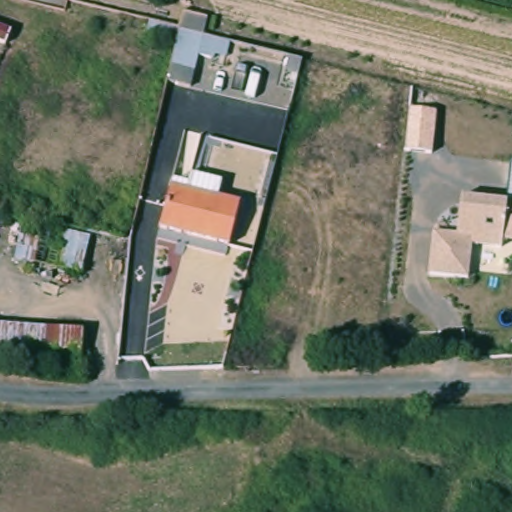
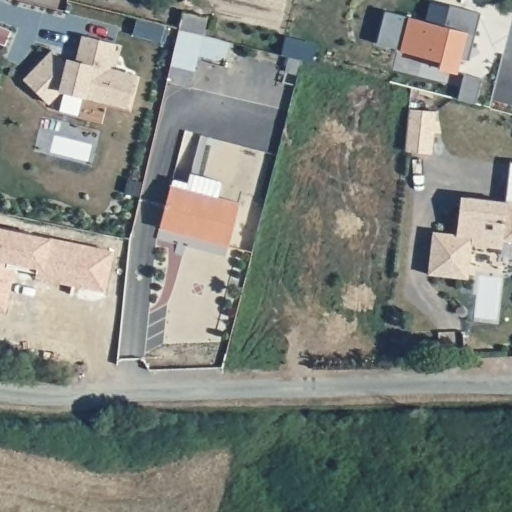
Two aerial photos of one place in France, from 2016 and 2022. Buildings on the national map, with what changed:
new [(467,61),(461,59),(457,72),(440,68),(437,59),(377,42),(386,11),(444,25),(450,5),(480,12),(467,61)]
unchanged [(213,23),(209,41),(187,35),(185,35),(189,18),(213,23)]
new [(66,65),(68,60),(75,61),(78,51),(82,36),(85,36),(114,44),(108,69),(134,76),(126,108),(59,91),(47,103),(23,81),(51,51),(66,65)]
unchanged [(409,108),(436,111),(432,154),(405,151),(409,108)]
unchanged [(499,246),(471,242),(466,274),(427,270),(431,230),(452,232),(457,194),(504,200),(509,160),(512,160),(512,241),(501,240),(499,246)]
unchanged [(235,204),(220,247),(152,228),(166,183),(235,204)]
new [(66,229),(90,236),(81,272),(56,266),(66,229)]
new [(19,234),(39,238),(34,263),(15,259),(19,234)]
unchanged [(80,370),(54,368),(0,365),(0,337),(56,343),(80,345),(80,370)]

